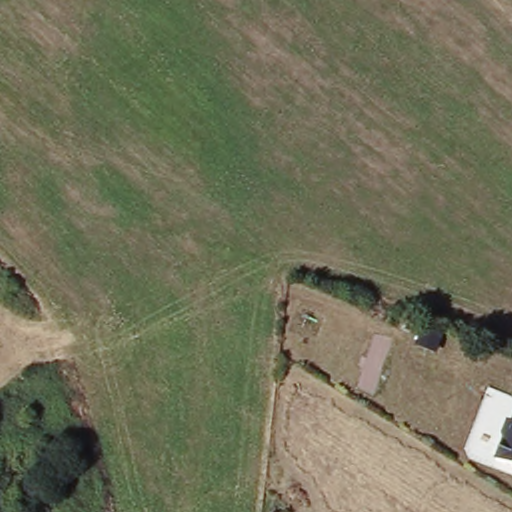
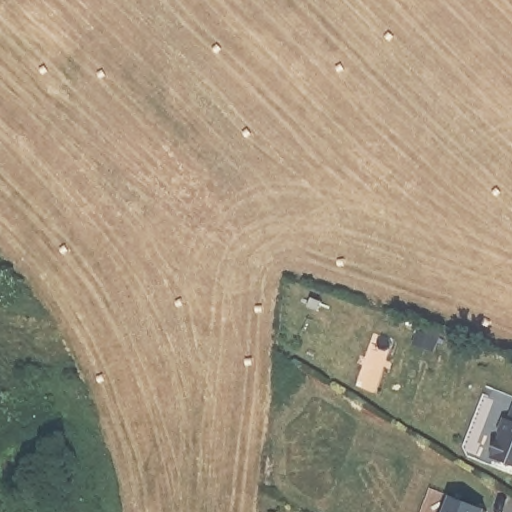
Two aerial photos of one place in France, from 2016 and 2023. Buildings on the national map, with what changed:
unchanged [(512,410),(512,463),(492,455),(512,410)]
new [(488,510),(488,512),(447,512),(452,497),(488,510)]

